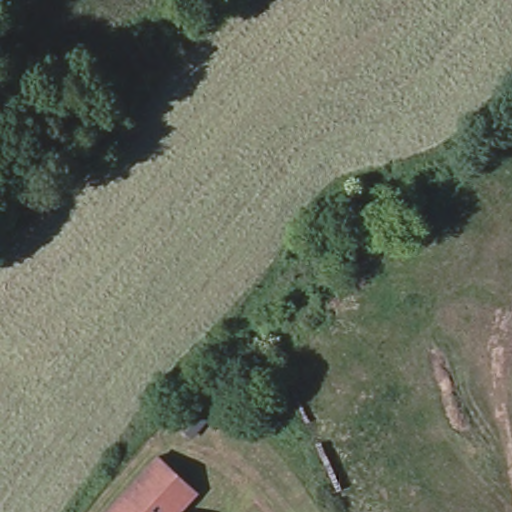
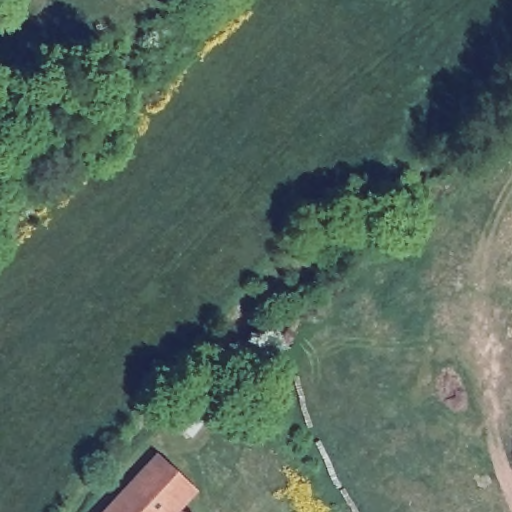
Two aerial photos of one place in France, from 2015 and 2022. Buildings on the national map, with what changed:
unchanged [(198,491),(182,508),(179,512),(102,512),(156,453),(198,491)]
unchanged [(191,512),(179,512),(182,508),(191,512)]

